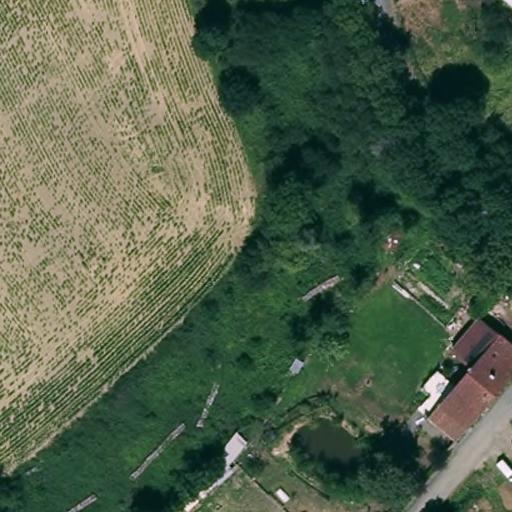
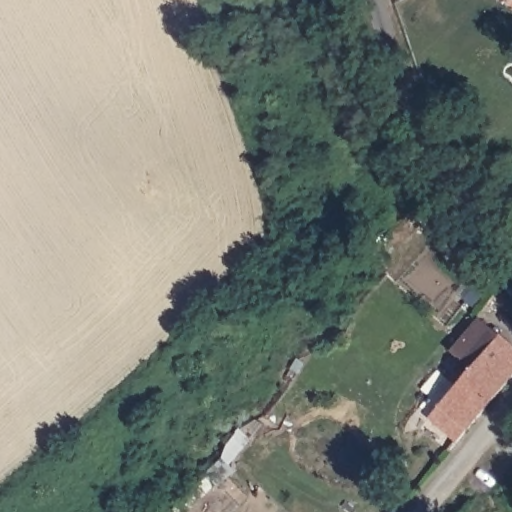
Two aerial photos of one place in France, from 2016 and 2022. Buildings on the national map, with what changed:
unchanged [(487,318),(501,331),(471,365),(470,364),(452,348),(480,318),(483,314),(487,318)]
unchanged [(501,331),(512,342),(512,376),(450,448),(422,422),(440,401),(471,365),(501,331)]

